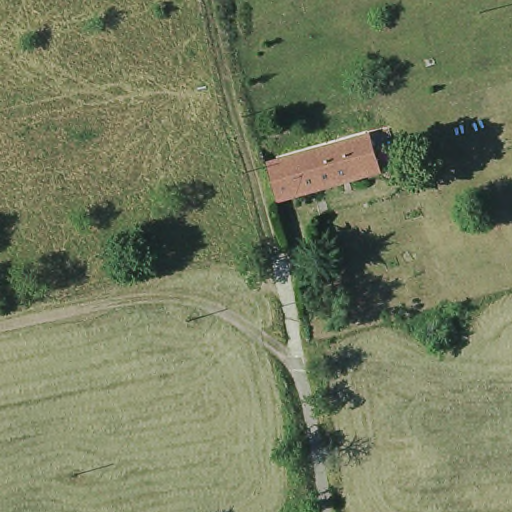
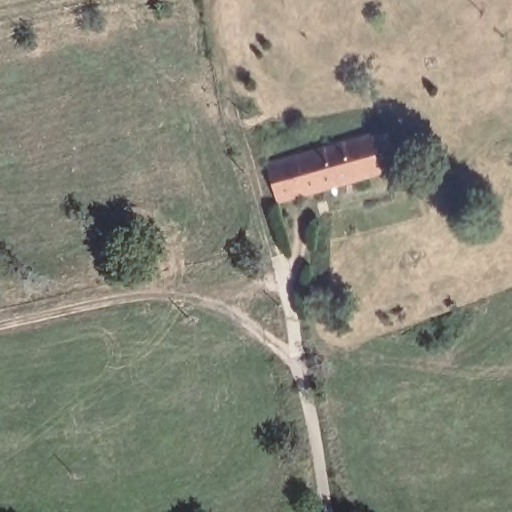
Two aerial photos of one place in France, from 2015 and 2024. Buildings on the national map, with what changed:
unchanged [(388,121),(399,160),(360,171),(350,132),(388,121)]
unchanged [(350,132),(360,171),(312,185),(306,163),(295,166),(290,149),(350,132)]
unchanged [(265,156),(290,149),(295,166),(306,163),(312,185),(275,195),(265,156)]

